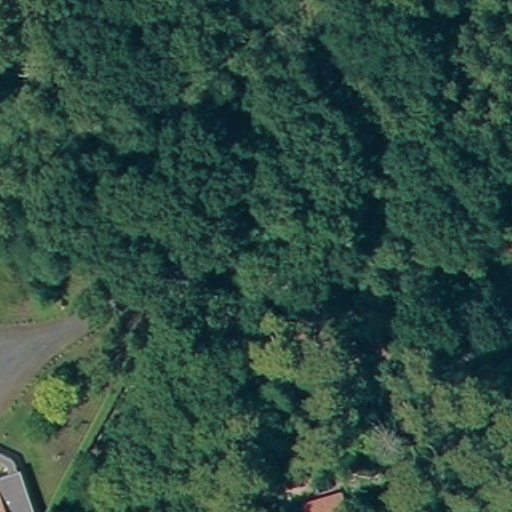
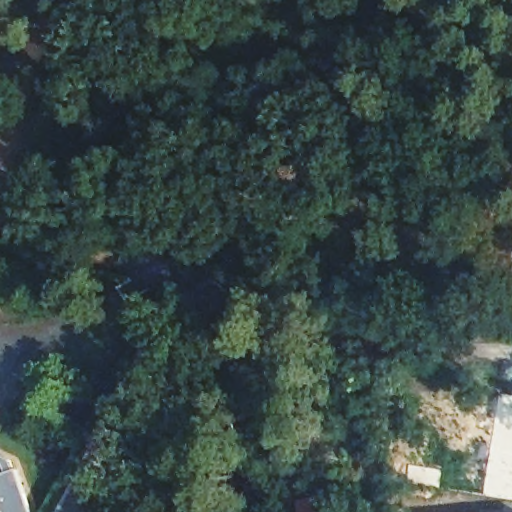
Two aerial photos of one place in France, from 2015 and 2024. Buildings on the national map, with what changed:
new [(498,392),(512,395),(512,500),(481,495),(498,392)]
unchanged [(34,512),(0,512),(0,475),(18,468),(34,512)]
unchanged [(302,512),(300,503),(337,496),(340,512),(302,512)]

